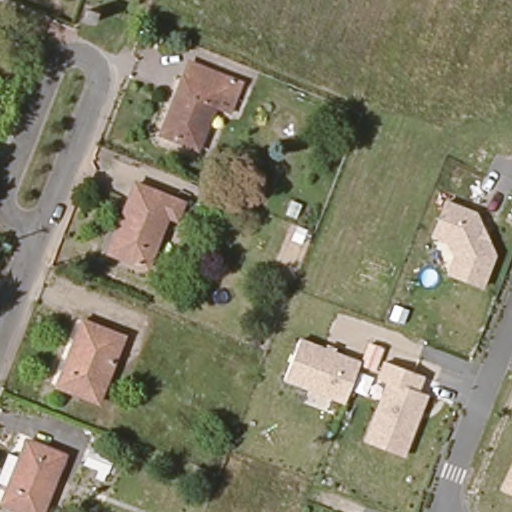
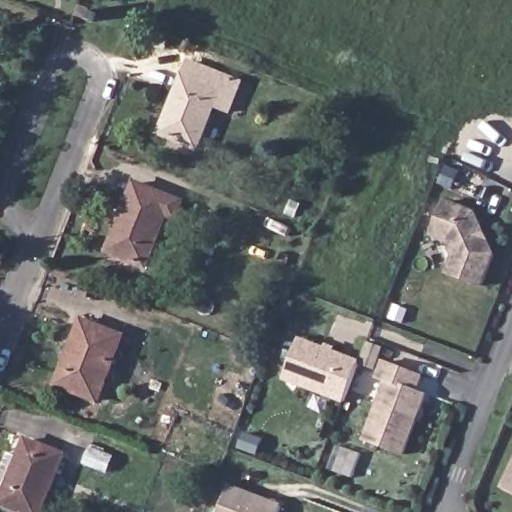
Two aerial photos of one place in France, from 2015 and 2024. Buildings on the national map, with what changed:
unchanged [(91,30),(79,23),(84,12),(95,18),(91,30)]
demolished [(101,42),(89,36),(94,24),(105,30),(101,42)]
unchanged [(216,90),(221,93),(200,149),(165,132),(189,74),(193,76),(199,61),(223,73),(216,90)]
unchanged [(175,219),(165,216),(144,266),(107,250),(133,183),(182,204),(175,219)]
unchanged [(483,290),(445,276),(452,255),(447,243),(429,236),(440,200),(477,213),(496,255),(483,290)]
unchanged [(99,403),(56,385),(81,321),(125,339),(99,403)]
unchanged [(344,405),(282,382),(297,339),(359,361),(344,405)]
unchanged [(373,380),(380,359),(424,374),(417,392),(426,395),(403,457),(365,443),(386,384),(373,380)]
unchanged [(20,512),(1,504),(27,439),(63,453),(39,512),(20,512)]
unchanged [(500,489),(512,465),(512,494),(500,489)]
new [(278,512),(219,512),(229,485),(281,504),(278,512)]

